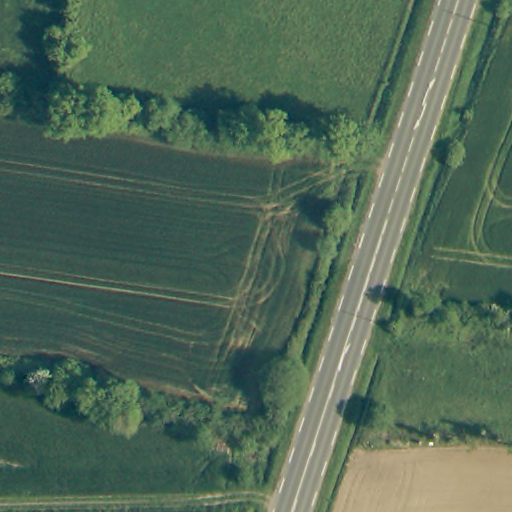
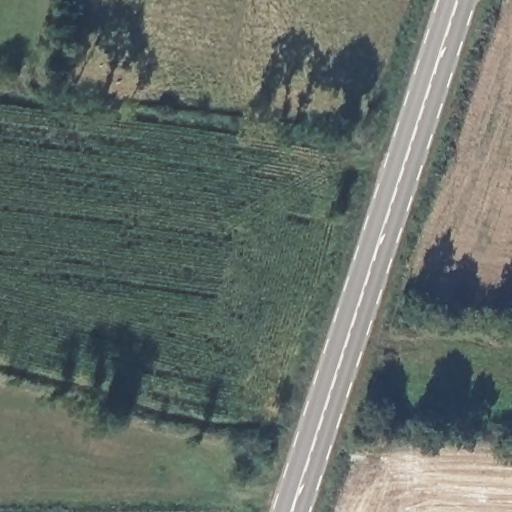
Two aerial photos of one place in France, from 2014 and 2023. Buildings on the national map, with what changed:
[]

